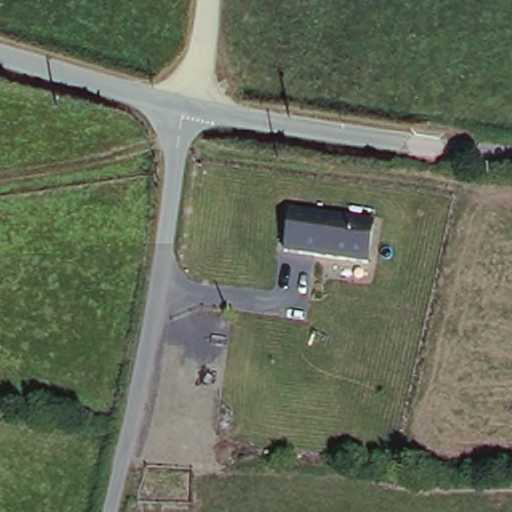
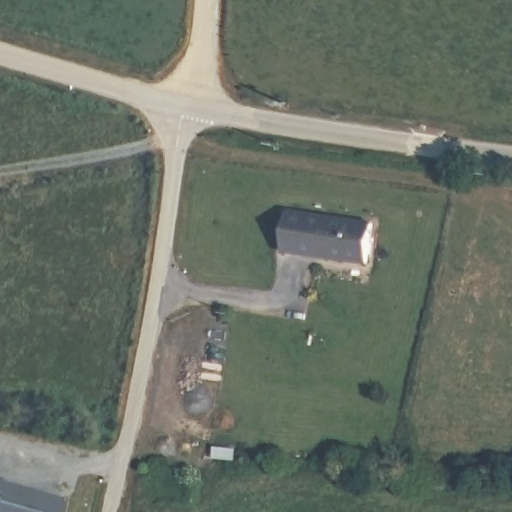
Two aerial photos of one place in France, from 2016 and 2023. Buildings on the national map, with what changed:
unchanged [(370,223),(367,266),(284,252),(289,213),(370,223)]
new [(0,476),(1,477),(1,480),(61,495),(57,512),(0,512),(0,476)]

